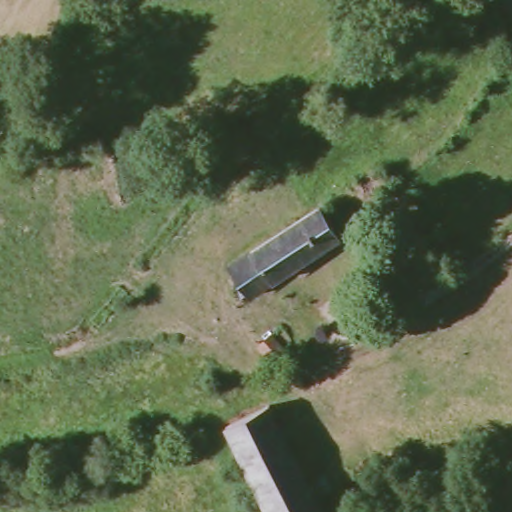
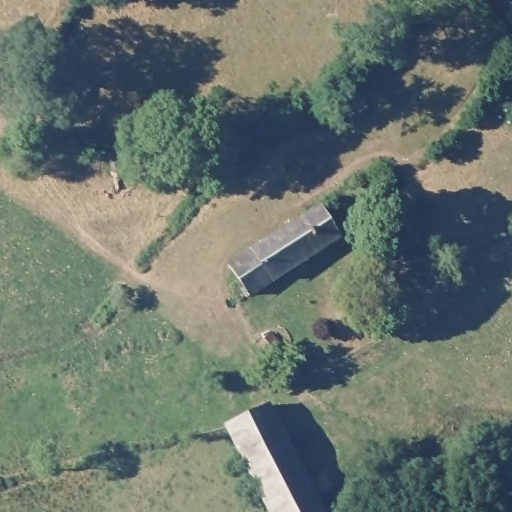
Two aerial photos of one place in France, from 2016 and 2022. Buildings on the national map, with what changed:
unchanged [(347,229),(260,290),(239,261),(327,199),(347,229)]
unchanged [(318,512),(271,512),(226,424),(266,405),(318,512)]

